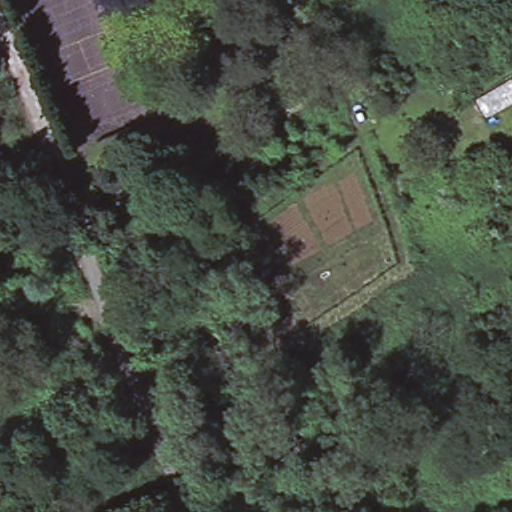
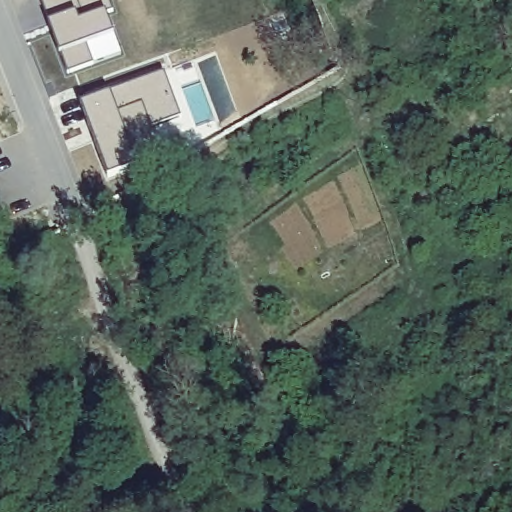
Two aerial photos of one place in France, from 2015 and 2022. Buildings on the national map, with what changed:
new [(113,10),(106,13),(114,35),(87,45),(94,64),(67,74),(41,0),(109,0),(113,10)]
new [(165,70),(180,114),(128,134),(137,159),(107,170),(81,97),(165,70)]

